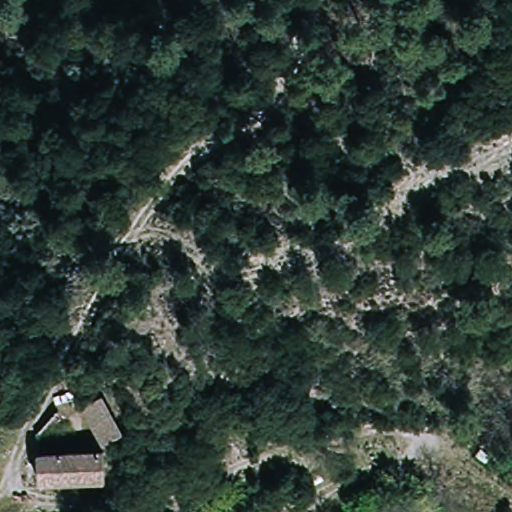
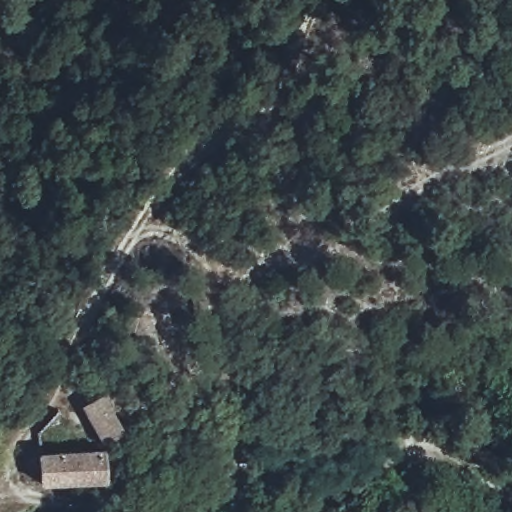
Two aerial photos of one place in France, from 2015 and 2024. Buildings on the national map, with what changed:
unchanged [(126,428),(103,443),(78,402),(100,387),(126,428)]
unchanged [(105,477),(38,481),(43,452),(43,451),(103,447),(105,477)]

